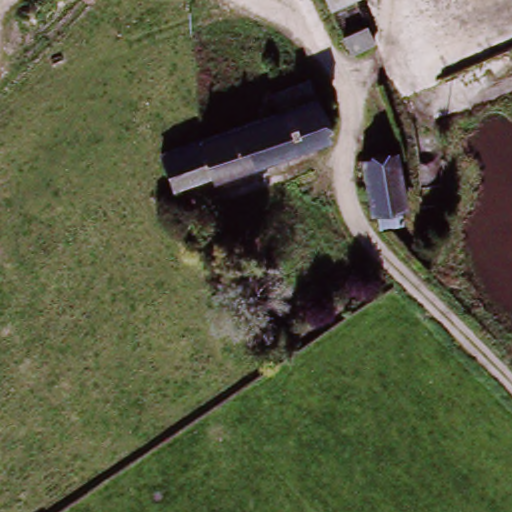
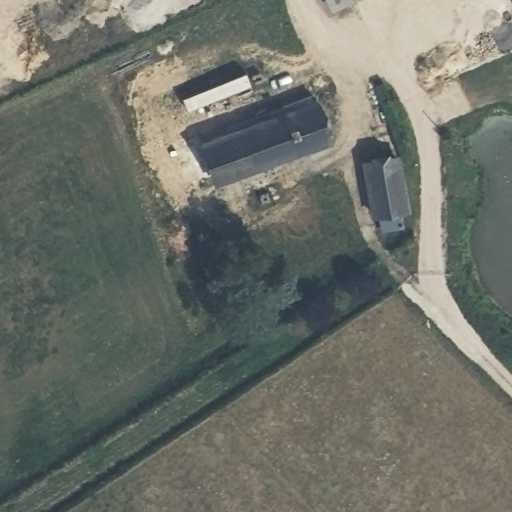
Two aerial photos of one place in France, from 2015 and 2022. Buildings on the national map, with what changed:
unchanged [(176,196),(163,161),(279,119),(272,99),(313,84),(319,104),(331,138),(176,196)]
unchanged [(374,217),(365,167),(399,159),(411,210),(402,212),(405,228),(386,230),(383,215),(374,217)]

